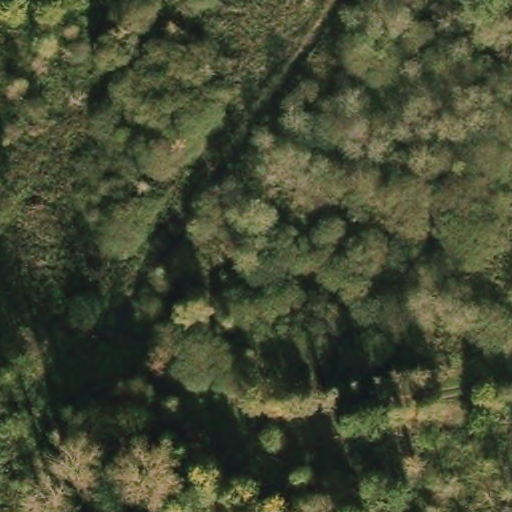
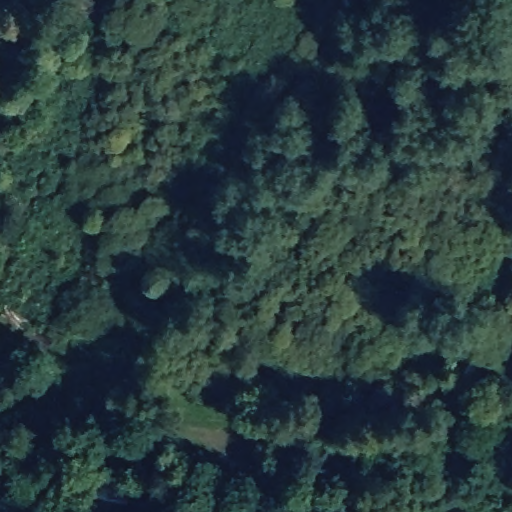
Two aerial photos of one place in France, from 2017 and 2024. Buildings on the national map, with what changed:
unchanged [(95,444),(109,447),(103,479),(89,475),(95,444)]

